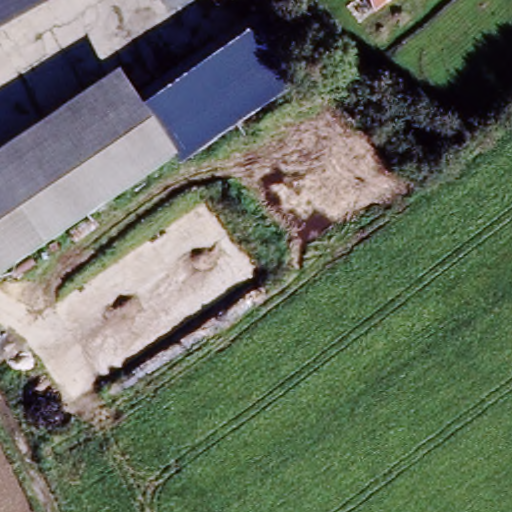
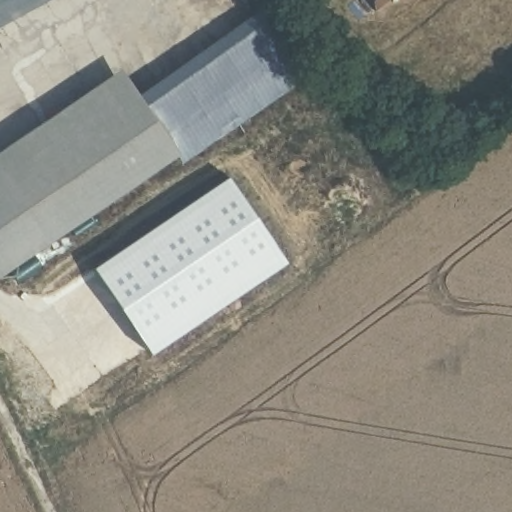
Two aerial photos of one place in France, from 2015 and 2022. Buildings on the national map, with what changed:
unchanged [(47,0),(0,30),(0,0),(47,0)]
unchanged [(311,72),(47,246),(0,179),(0,152),(129,69),(142,93),(264,12),(311,72)]
new [(229,178),(290,262),(155,355),(96,271),(229,178)]
unchanged [(47,246),(0,276),(0,179),(47,246)]

